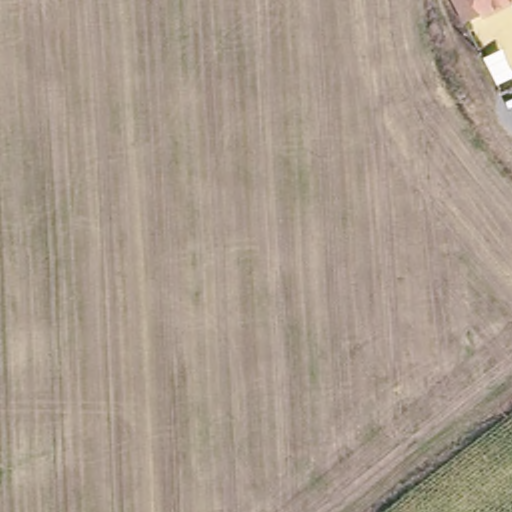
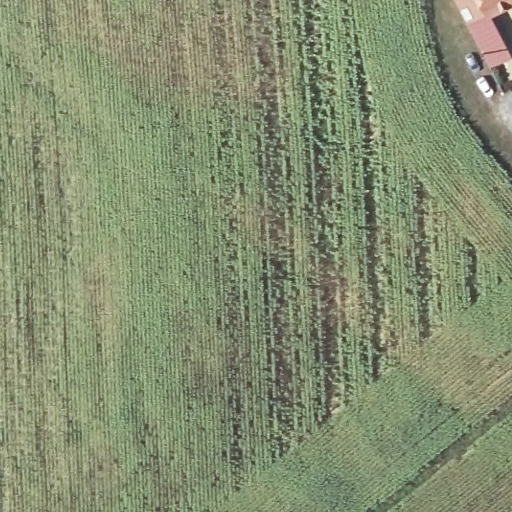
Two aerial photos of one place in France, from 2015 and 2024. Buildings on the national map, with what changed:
unchanged [(483,12),(465,30),(455,0),(509,0),(483,12)]

